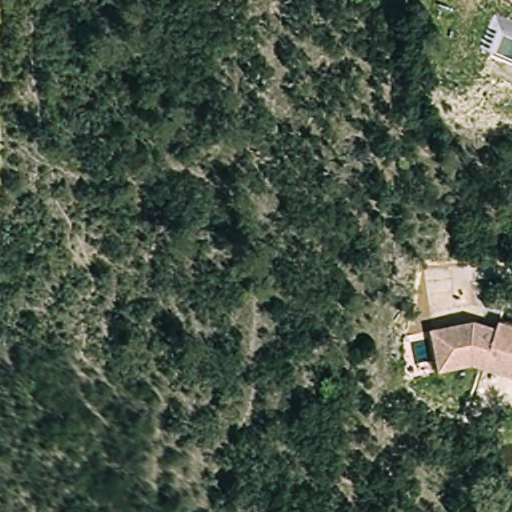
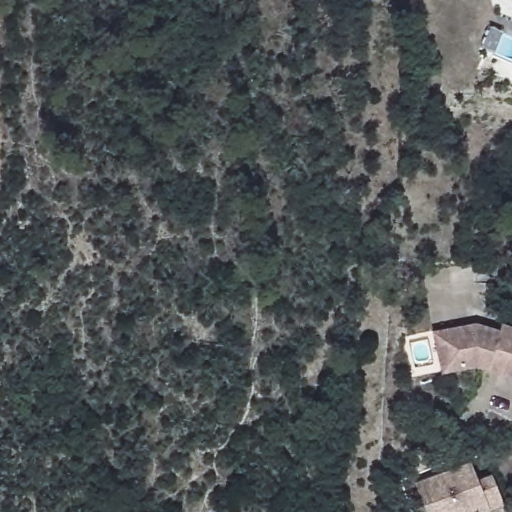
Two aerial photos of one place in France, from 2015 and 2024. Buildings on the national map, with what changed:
unchanged [(432,326),(474,317),(496,324),(500,317),(512,320),(512,370),(473,358),(456,362),(439,365),(435,346),(432,326)]
new [(467,468),(475,486),(488,480),(500,509),(490,512),(421,512),(412,490),(467,468)]

